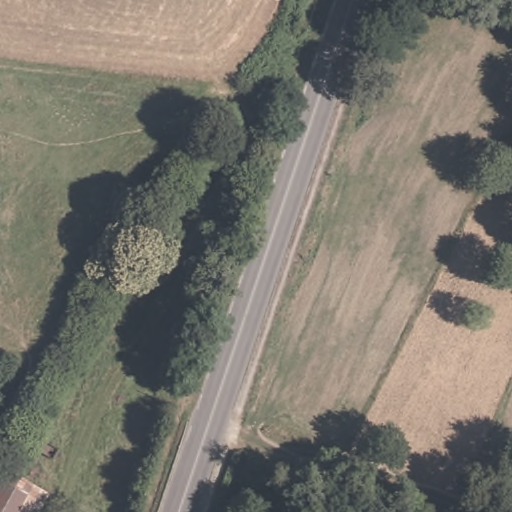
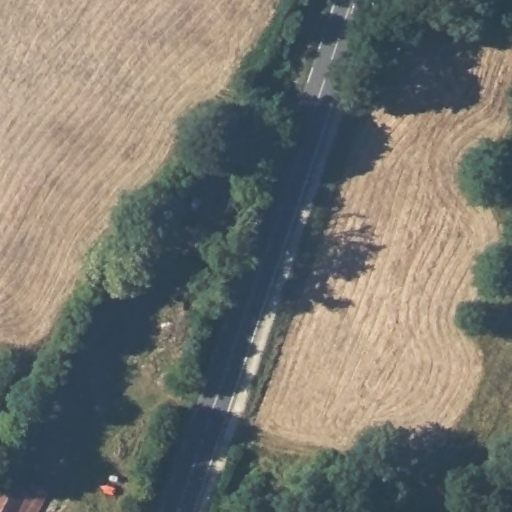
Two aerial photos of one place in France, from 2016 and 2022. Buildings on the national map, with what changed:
unchanged [(10,482),(13,477),(46,498),(38,512),(0,512),(0,500),(10,482)]

